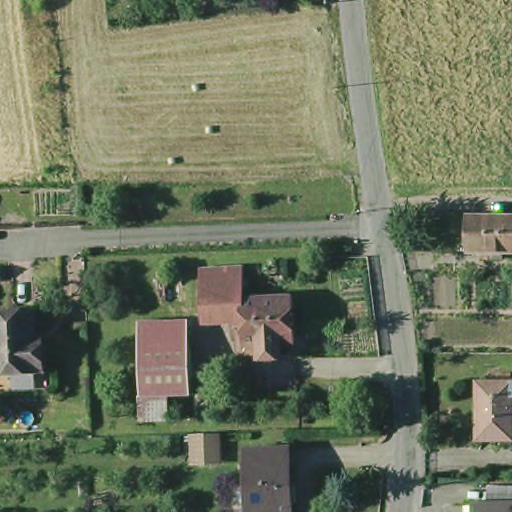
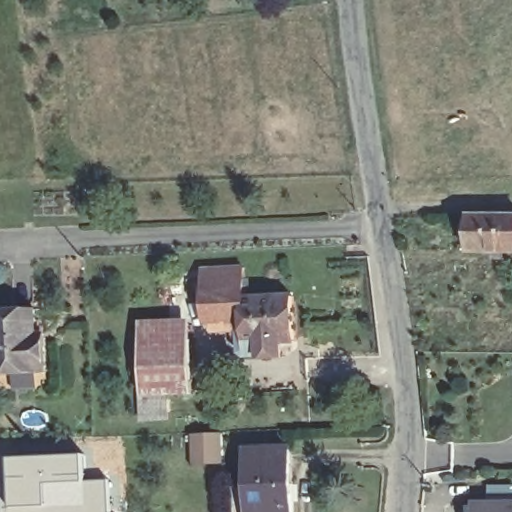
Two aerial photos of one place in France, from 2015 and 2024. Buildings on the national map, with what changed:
unchanged [(487,254),(487,246),(467,247),(467,211),(512,211),(512,246),(498,246),(498,254),(487,254)]
unchanged [(244,318),(204,320),(203,308),(197,308),(197,302),(202,302),(202,294),(201,271),(242,268),(244,292),(245,302),(243,302),(244,318)]
unchanged [(293,300),(295,345),(245,347),(244,318),(243,302),(245,302),(293,300)]
unchanged [(0,318),(25,317),(25,342),(34,342),(34,355),(35,378),(0,381),(0,318)]
unchanged [(147,420),(147,398),(147,396),(144,320),(195,319),(197,393),(167,395),(167,397),(167,420),(147,420)]
demolished [(507,421),(507,444),(472,443),(472,385),(485,385),(485,376),(507,376),(507,386),(512,386),(512,422),(507,421)]
unchanged [(220,434),(220,463),(190,465),(189,435),(220,434)]
unchanged [(238,487),(255,486),(254,451),(294,449),(297,499),(297,512),(239,512),(239,502),(238,487)]
new [(87,480),(110,479),(111,512),(3,512),(1,457),(86,453),(87,480)]
unchanged [(512,506),(512,512),(473,512),(472,507),(512,506)]

